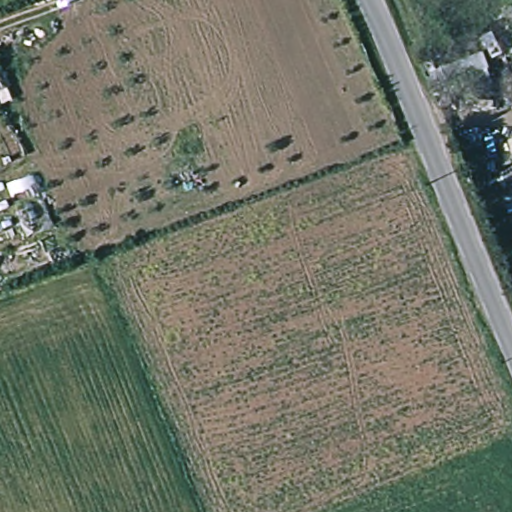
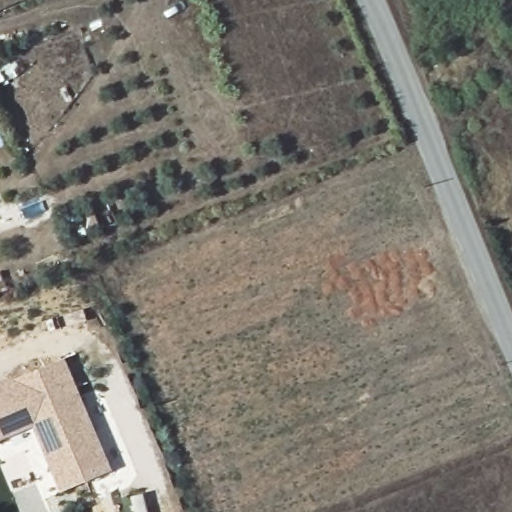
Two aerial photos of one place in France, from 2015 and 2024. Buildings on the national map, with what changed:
unchanged [(474,60),(485,90),(450,104),(439,72),(474,60)]
new [(63,358),(111,469),(62,490),(33,425),(0,439),(0,384),(63,358)]

